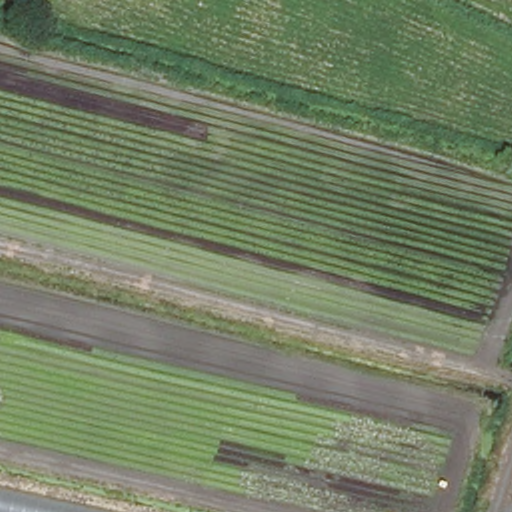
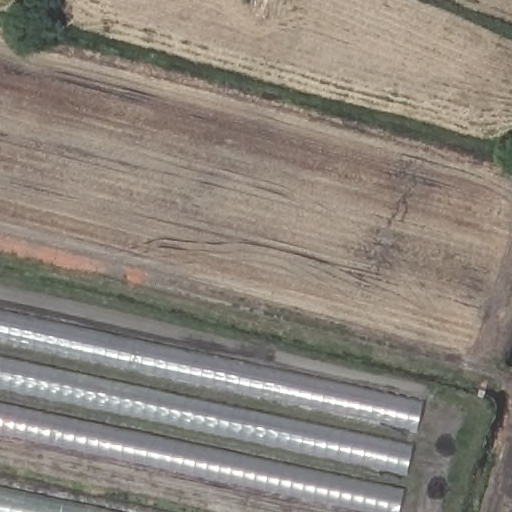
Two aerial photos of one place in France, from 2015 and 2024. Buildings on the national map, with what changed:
new [(0,311),(424,402),(416,434),(0,342),(0,311)]
new [(0,358),(413,447),(408,475),(0,388),(0,358)]
new [(0,433),(0,403),(406,489),(401,512),(371,512),(0,433)]
new [(0,490),(104,512),(0,512),(0,490)]

